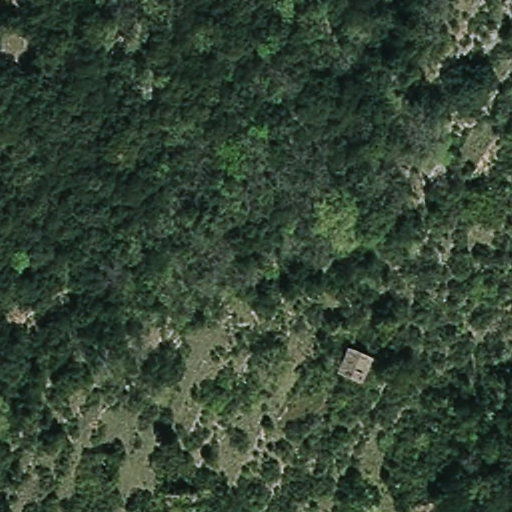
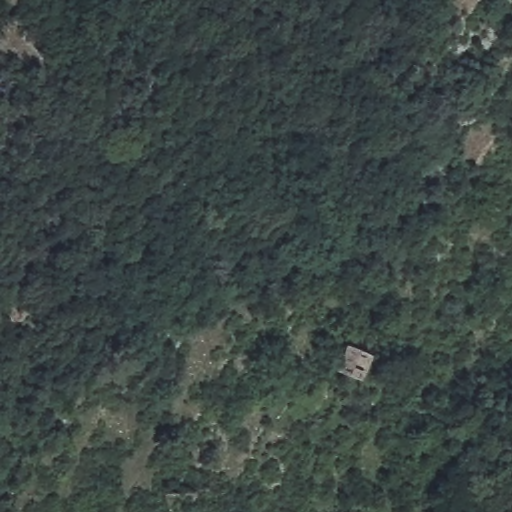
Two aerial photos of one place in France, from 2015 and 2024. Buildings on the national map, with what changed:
unchanged [(370,353),(360,377),(338,368),(348,344),(370,353)]

